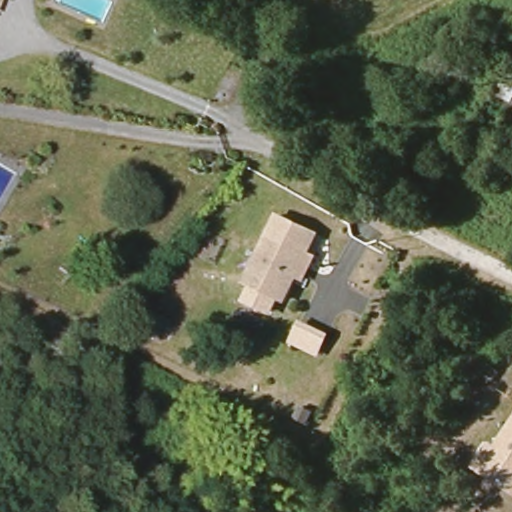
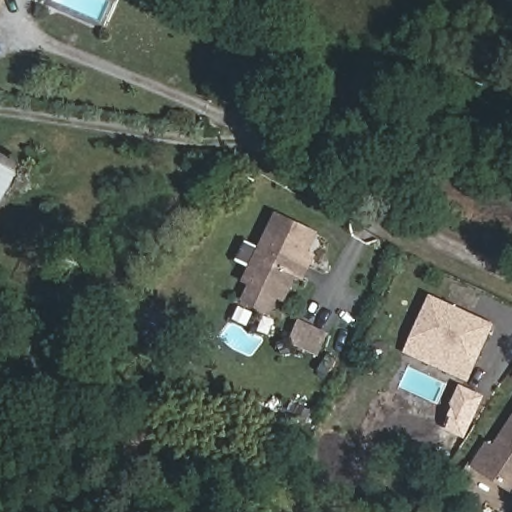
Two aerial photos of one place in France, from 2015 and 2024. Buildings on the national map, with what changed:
unchanged [(512,104),(510,108),(491,98),(504,60),(512,63),(512,104)]
unchanged [(279,293),(247,277),(272,229),(280,215),(293,221),(287,235),(303,245),(279,293)]
new [(469,383),(403,353),(430,294),(495,325),(469,383)]
unchanged [(321,357),(289,345),(298,320),(328,333),(321,357)]
new [(466,439),(447,430),(451,418),(448,417),(453,408),(451,406),(461,385),(486,395),(466,439)]
unchanged [(487,441),(496,445),(512,419),(512,494),(471,469),(487,441)]

